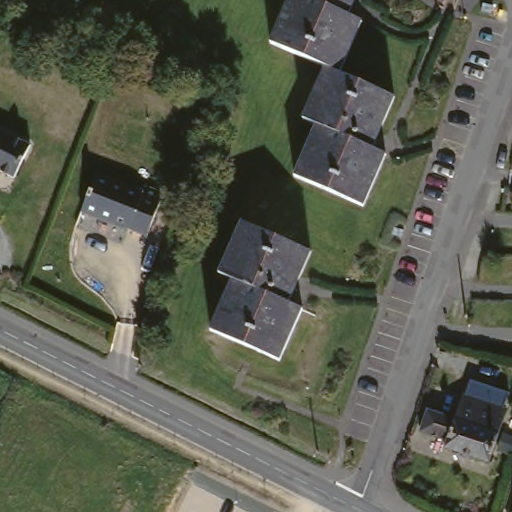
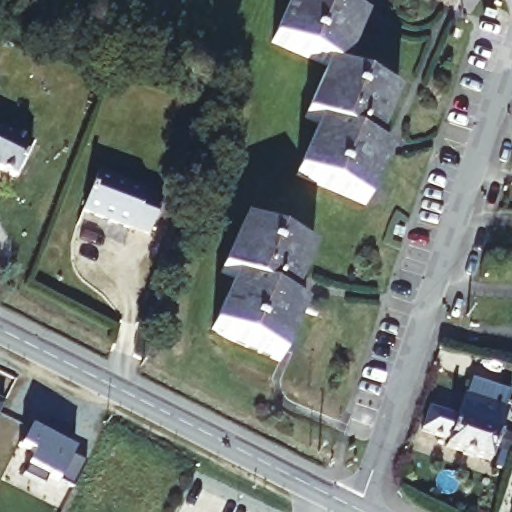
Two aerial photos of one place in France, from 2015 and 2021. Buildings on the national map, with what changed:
unchanged [(359,19),(337,74),(391,96),(369,149),(382,154),(360,207),(290,176),(312,125),(300,119),(322,67),(267,43),(286,0),(351,0),(345,14),(359,19)]
unchanged [(501,6),(498,15),(483,10),(487,2),(501,6)]
unchanged [(14,174),(0,167),(0,127),(30,143),(14,174)]
unchanged [(143,192),(142,193),(160,201),(146,234),(127,226),(127,228),(81,208),(97,172),(143,192)]
unchanged [(307,252),(285,304),(297,309),(276,360),(207,330),(229,279),(216,274),(238,222),(307,252)]
unchanged [(508,409),(490,462),(446,446),(448,440),(421,431),(428,409),(456,419),(464,395),(508,409)]
new [(0,409),(0,404),(2,405),(0,409)]
new [(44,435),(51,421),(75,433),(68,447),(76,452),(74,456),(88,463),(75,489),(51,477),(46,486),(26,476),(36,454),(21,447),(30,428),(44,435)]
unchanged [(512,504),(512,512),(510,512),(512,504)]

